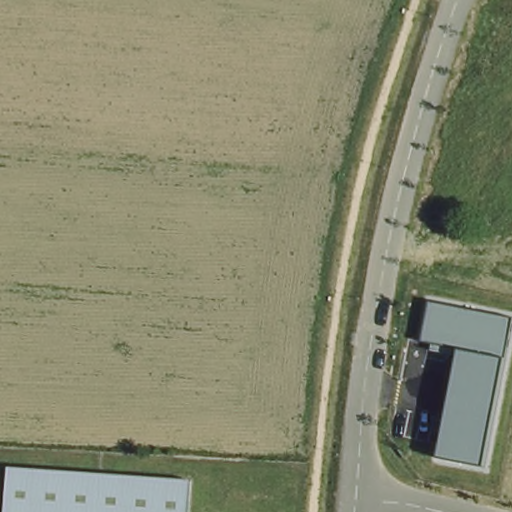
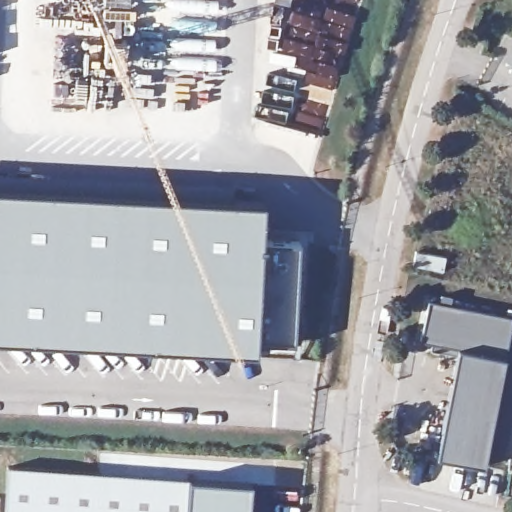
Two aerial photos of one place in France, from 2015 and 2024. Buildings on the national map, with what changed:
new [(356,14),(322,2),(323,0),(360,0),(356,14)]
new [(307,85),(303,83),(307,60),(274,51),(277,36),(281,22),(283,23),(289,6),(319,12),(322,2),(356,14),(344,56),(340,66),(330,105),(322,129),(294,121),(300,100),(303,101),(304,98),(307,85)]
new [(512,45),(512,59),(506,56),(512,45)]
new [(255,347),(0,336),(0,184),(262,195),(260,234),(298,236),(294,338),(256,337),(255,347)]
unchanged [(512,321),(483,468),(436,458),(457,347),(422,340),(429,300),(512,315),(512,321)]
unchanged [(89,512),(0,512),(0,477),(0,466),(91,471),(89,512)]
unchanged [(180,512),(89,512),(91,471),(182,475),(180,512)]

